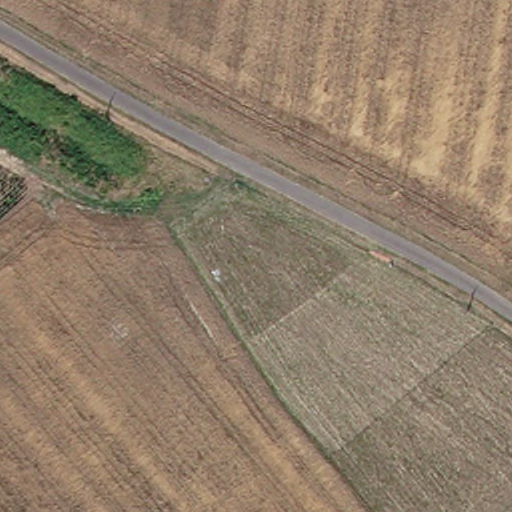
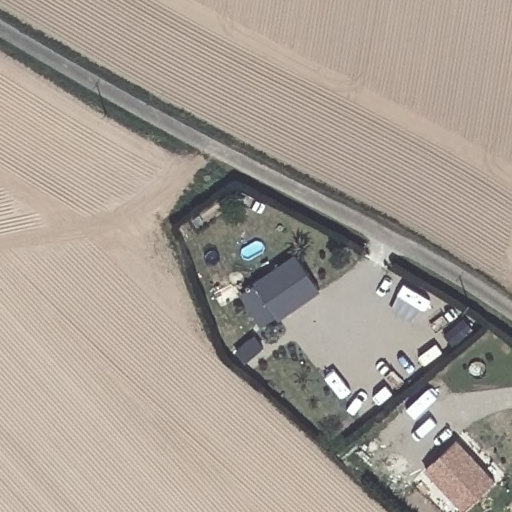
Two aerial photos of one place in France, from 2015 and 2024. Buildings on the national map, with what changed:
new [(265,330),(240,295),(296,256),(320,291),(265,330)]
new [(425,471),(458,440),(497,482),(465,512),(464,512),(425,471)]

